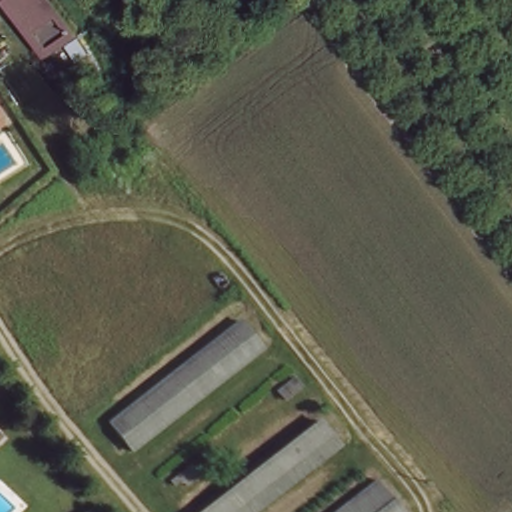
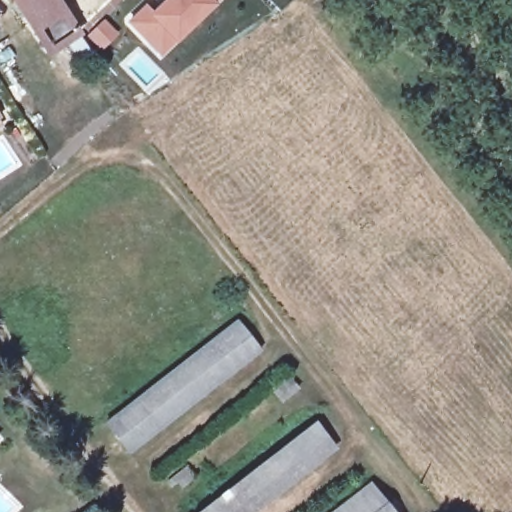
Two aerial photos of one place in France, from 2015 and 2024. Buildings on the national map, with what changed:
unchanged [(47,54),(11,0),(53,0),(75,35),(47,54)]
new [(175,41),(160,55),(127,21),(146,3),(152,9),(161,0),(219,0),(215,5),(175,41)]
unchanged [(260,355),(131,455),(110,426),(240,327),(260,355)]
unchanged [(335,452),(256,512),(203,512),(316,426),(335,452)]
unchanged [(388,512),(337,512),(369,487),(388,512)]

